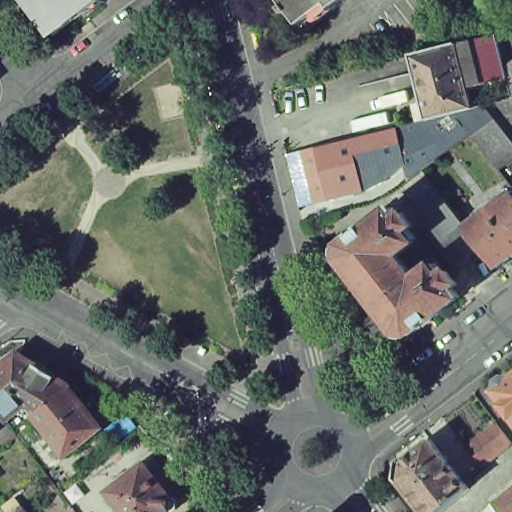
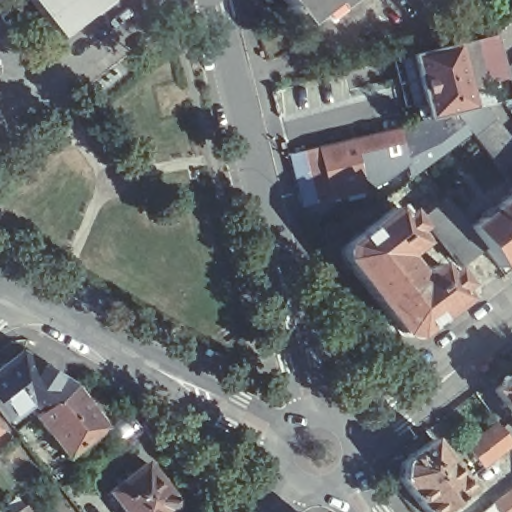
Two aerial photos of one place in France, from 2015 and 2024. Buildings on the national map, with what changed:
unchanged [(60,33),(34,0),(103,0),(60,33)]
unchanged [(311,30),(297,12),(294,14),(289,9),(293,6),(288,0),(350,0),(311,30)]
unchanged [(469,88),(458,45),(497,35),(505,69),(512,63),(512,96),(508,79),(469,88)]
unchanged [(406,159),(398,127),(419,122),(414,105),(423,103),(411,57),(411,56),(458,44),(458,45),(469,88),(474,108),(483,105),(483,106),(494,120),(504,133),(512,142),(512,161),(500,171),(491,160),(483,149),(473,136),(471,134),(443,155),(442,156),(412,178),(406,159)]
unchanged [(406,159),(381,165),(384,174),(361,180),(363,187),(329,196),(316,147),(398,127),(406,159)]
unchanged [(421,218),(446,199),(464,223),(468,228),(512,194),(512,257),(499,268),(483,247),(459,266),(440,242),(421,218)]
unchanged [(342,259),(341,257),(340,253),(341,250),(341,248),(344,245),(392,207),(399,216),(404,212),(414,226),(407,231),(415,242),(399,255),(407,267),(371,296),(342,259)]
unchanged [(407,267),(417,278),(433,266),(441,276),(449,271),(459,284),(454,288),(461,297),(413,334),(410,336),(407,336),(404,336),(402,334),(399,333),(371,296),(407,267)]
unchanged [(0,405),(0,372),(25,353),(77,386),(78,387),(40,416),(32,406),(13,422),(0,405)]
unchanged [(512,410),(508,405),(509,403),(499,391),(512,381),(512,410)]
unchanged [(78,387),(79,389),(83,387),(91,397),(88,400),(98,414),(102,411),(110,422),(107,425),(109,428),(72,457),(40,416),(78,387)]
unchanged [(507,436),(512,442),(512,444),(503,452),(493,460),(482,468),(467,447),(477,439),(487,431),(497,423),(507,436)]
unchanged [(3,430),(0,432),(0,426),(3,430)]
unchanged [(401,463),(432,439),(470,489),(440,512),(424,512),(399,479),(401,463)]
unchanged [(175,494),(180,495),(183,499),(182,507),(178,510),(173,509),(170,512),(129,512),(121,502),(116,506),(110,499),(115,495),(111,490),(149,460),(175,494)]
unchanged [(509,495),(512,492),(512,512),(505,512),(498,503),(509,495)]
unchanged [(20,499),(28,508),(31,512),(14,512),(9,507),(20,499)]
unchanged [(502,512),(486,512),(496,504),(502,512)]

